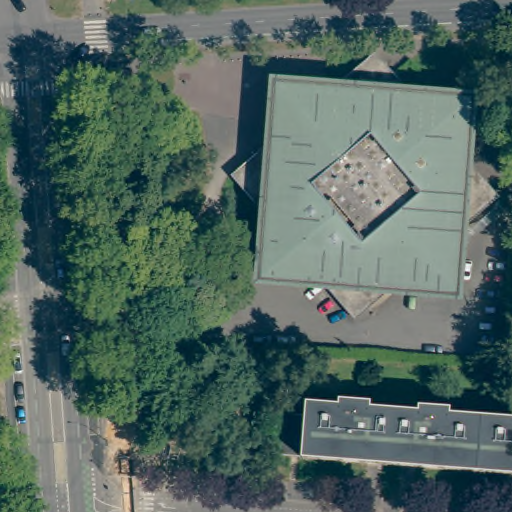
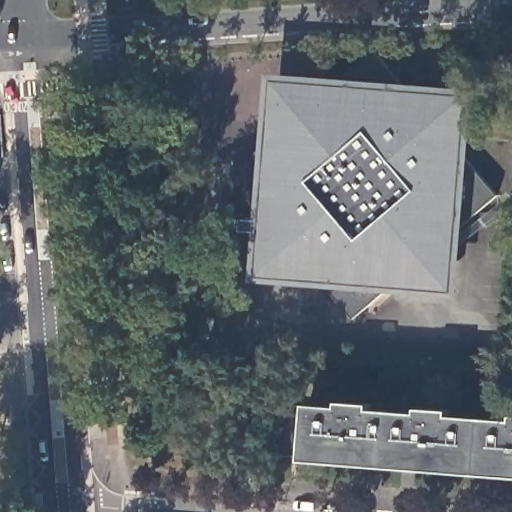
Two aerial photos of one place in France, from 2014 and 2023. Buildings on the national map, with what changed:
unchanged [(321,270),(271,265),(274,215),(237,171),(280,134),(284,81),(336,85),(380,47),(417,90),(468,93),(465,147),(502,190),(455,230),(459,235),(456,279),(402,275),(358,314),(321,270)]
unchanged [(337,406),(338,400),(370,403),(370,409),(417,413),(418,407),(449,410),(448,415),(512,420),(512,475),(417,467),(307,458),(302,457),(305,415),(306,404),(337,406)]
unchanged [(302,457),(271,455),(274,412),(305,415),(302,457)]

